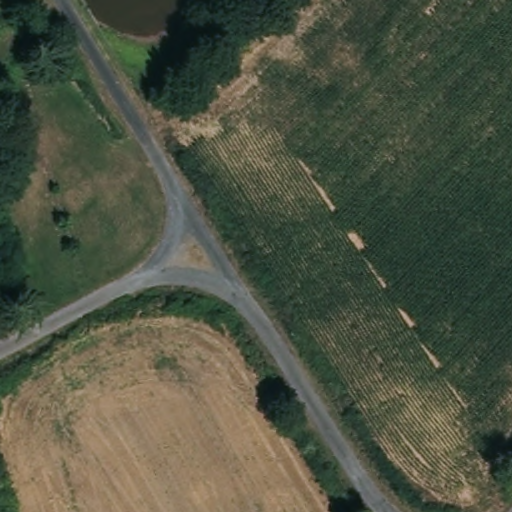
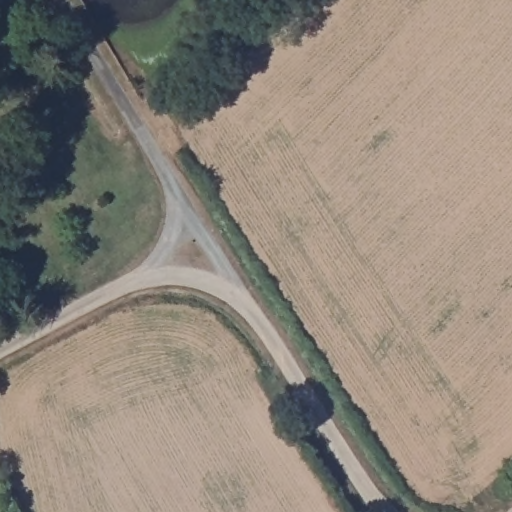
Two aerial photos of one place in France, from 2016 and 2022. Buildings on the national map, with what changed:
[]

